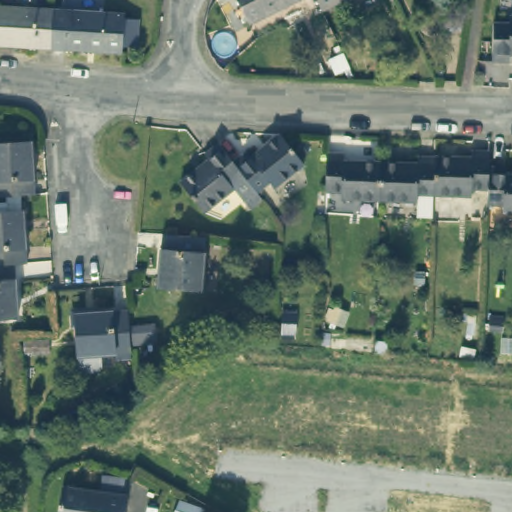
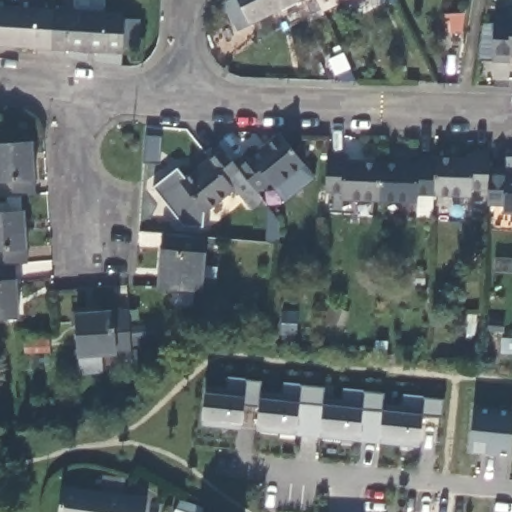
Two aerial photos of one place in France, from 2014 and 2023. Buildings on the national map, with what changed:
unchanged [(236,0),(301,0),(249,26),(236,0)]
unchanged [(316,0),(346,0),(322,12),(316,0)]
unchanged [(53,10),(50,51),(0,48),(0,7),(53,10)]
unchanged [(124,15),(122,55),(50,51),(53,10),(124,15)]
unchanged [(460,32),(445,33),(443,14),(463,13),(460,32)]
unchanged [(510,16),(512,17),(512,55),(508,55),(508,63),(492,62),(493,24),(510,24),(510,16)]
unchanged [(308,165),(279,188),(274,182),(261,192),(237,162),(251,151),(255,158),(284,135),(308,165)]
unchanged [(31,191),(0,193),(0,139),(32,136),(35,191),(31,191)]
unchanged [(255,210),(249,203),(238,189),(208,213),(185,183),(214,160),(209,154),(222,144),(237,162),(261,192),(261,193),(267,200),(255,210)]
unchanged [(471,159),(472,151),(488,151),(488,166),(487,190),(470,189),(470,197),(433,196),(434,157),(471,159)]
unchanged [(343,154),(342,161),(380,163),(378,201),(342,200),(342,192),(325,192),(325,184),(326,154),(343,154)]
unchanged [(380,163),(417,164),(417,156),(434,157),(433,196),(416,195),(416,202),(378,201),(380,163)]
unchanged [(488,166),(505,167),(505,175),(512,175),(512,213),(503,213),(503,206),(487,205),(487,190),(488,166)]
unchanged [(15,261),(0,261),(0,207),(24,206),(27,260),(15,261)]
unchanged [(164,284),(168,230),(211,234),(206,288),(164,284)]
unchanged [(0,316),(0,261),(15,261),(18,315),(0,316)]
unchanged [(77,358),(74,315),(128,311),(131,354),(101,356),(102,372),(79,374),(77,358)]
new [(222,428),(201,426),(205,388),(226,390),(227,379),(261,382),(259,393),(257,409),(242,407),(241,424),(241,430),(222,428)]
new [(277,433),(256,431),(257,409),(259,393),(281,396),(282,384),(323,388),(322,400),(322,407),(298,405),(296,429),(295,435),(277,433)]
new [(340,439),(319,437),(322,407),(322,400),(341,402),(342,390),(383,394),(382,406),(382,413),(362,411),(359,435),(358,441),(340,439)]
new [(400,445),(378,443),(382,413),(382,406),(401,408),(402,396),(443,400),(441,419),(421,417),(418,441),(418,447),(400,445)]
new [(512,410),(512,456),(472,452),(473,407),(512,410)]
unchanged [(126,512),(60,512),(63,488),(128,497),(126,512)]
unchanged [(183,488),(205,499),(199,512),(197,512),(178,504),(183,488)]

